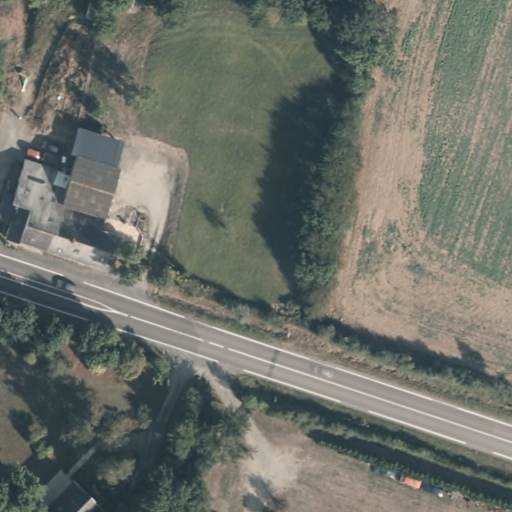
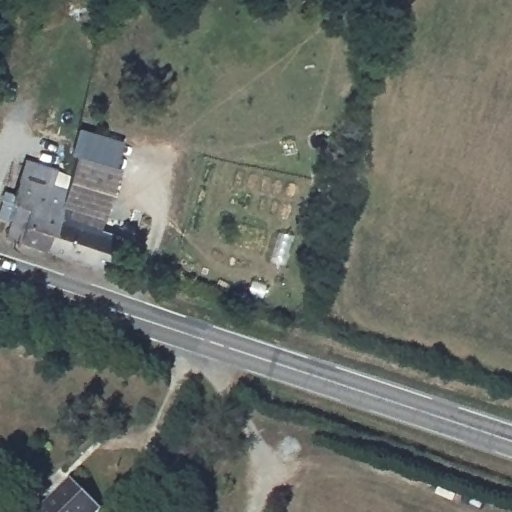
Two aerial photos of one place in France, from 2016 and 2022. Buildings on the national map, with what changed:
unchanged [(78,131),(79,128),(79,126),(125,138),(118,163),(100,158),(75,152),(78,131)]
unchanged [(47,246),(64,185),(68,187),(76,167),(72,165),(75,152),(100,158),(118,163),(122,165),(104,225),(121,230),(110,266),(47,246)]
unchanged [(9,234),(18,203),(14,200),(29,156),(59,166),(54,180),(64,185),(47,246),(9,234)]
unchanged [(73,472),(102,498),(90,512),(37,512),(73,472)]

